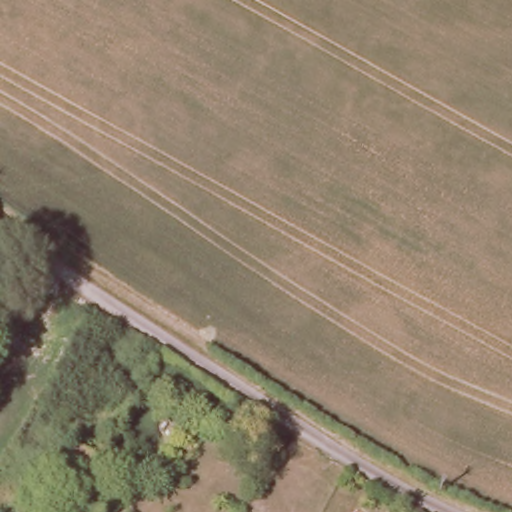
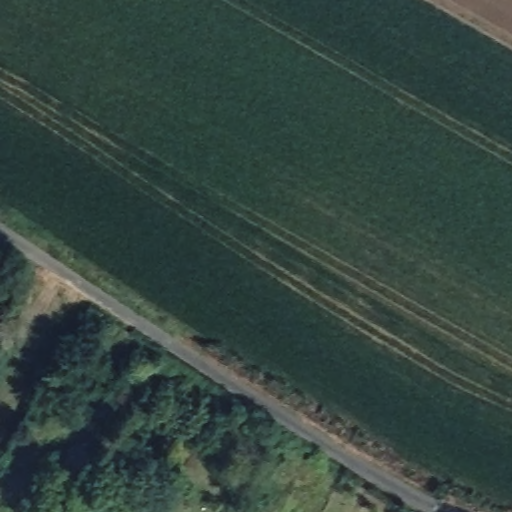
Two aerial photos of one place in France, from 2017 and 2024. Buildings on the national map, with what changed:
unchanged [(60,472),(77,446),(90,454),(72,480),(60,472)]

